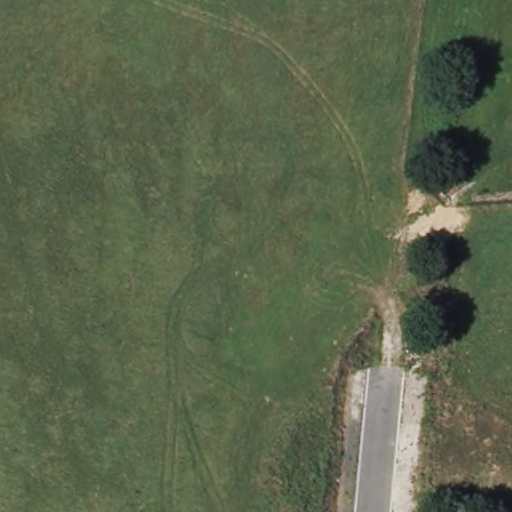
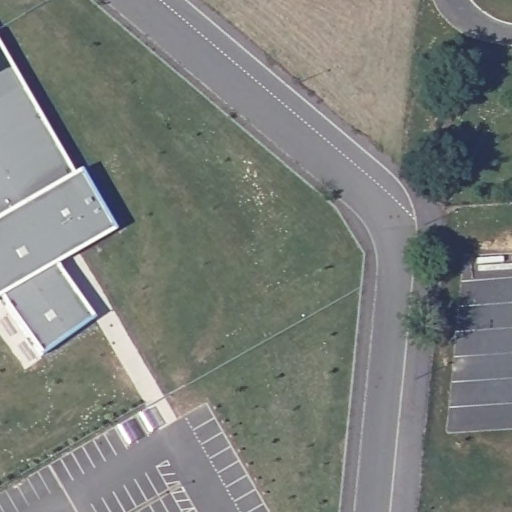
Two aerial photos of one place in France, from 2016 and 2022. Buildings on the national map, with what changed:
new [(75,175),(79,173),(112,230),(56,263),(93,317),(44,354),(0,295),(0,48),(75,175)]

